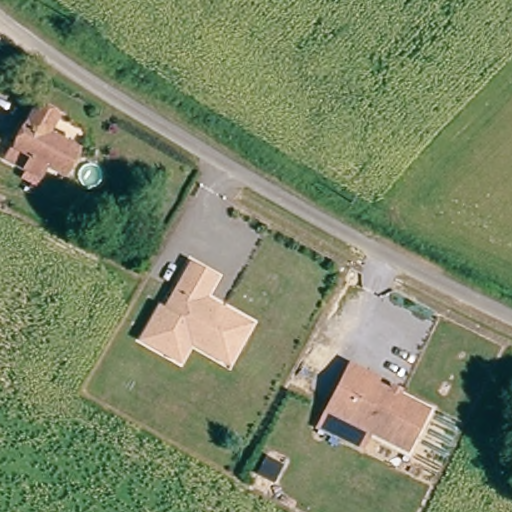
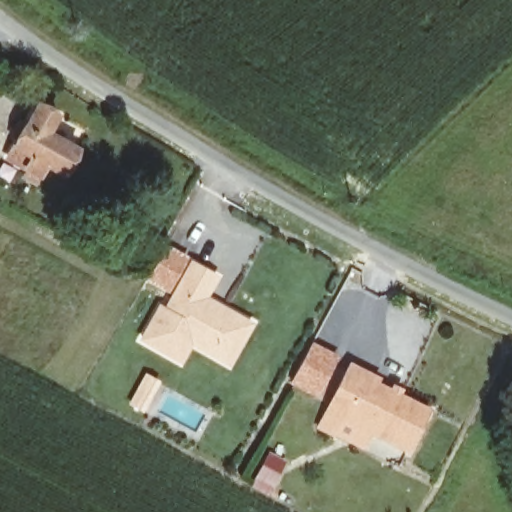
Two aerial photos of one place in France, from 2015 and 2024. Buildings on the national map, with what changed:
unchanged [(44,161),(36,174),(5,154),(39,102),(57,113),(47,129),(78,148),(64,173),(44,161)]
unchanged [(199,339),(189,358),(150,337),(168,306),(174,309),(185,288),(200,261),(206,265),(224,274),(212,295),(209,301),(228,311),(231,306),(259,321),(240,354),(237,360),(199,339)]
new [(340,356),(318,399),(290,385),(312,341),(340,356)]
unchanged [(380,383),(433,410),(413,451),(346,418),(331,411),(354,365),(368,372),(382,379),(380,383)]
unchanged [(271,474),(257,466),(267,448),(280,456),(271,474)]

